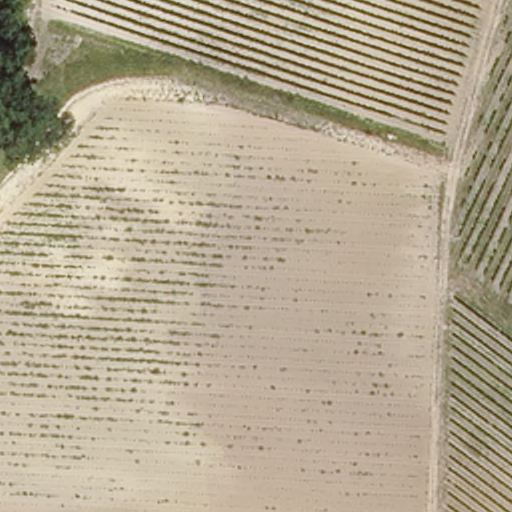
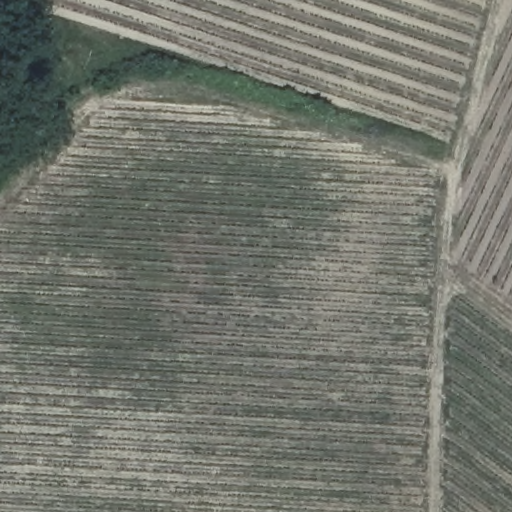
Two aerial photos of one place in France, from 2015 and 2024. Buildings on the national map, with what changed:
[]

